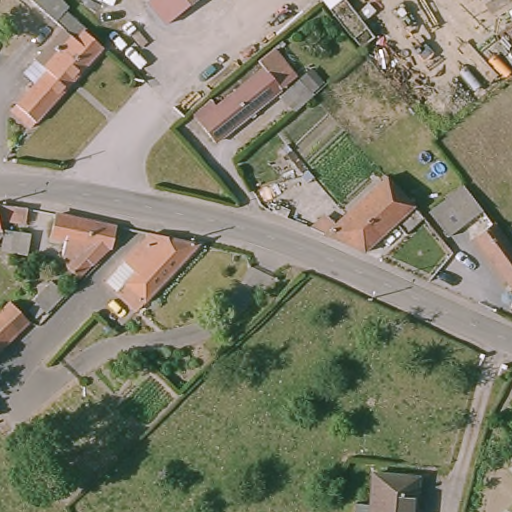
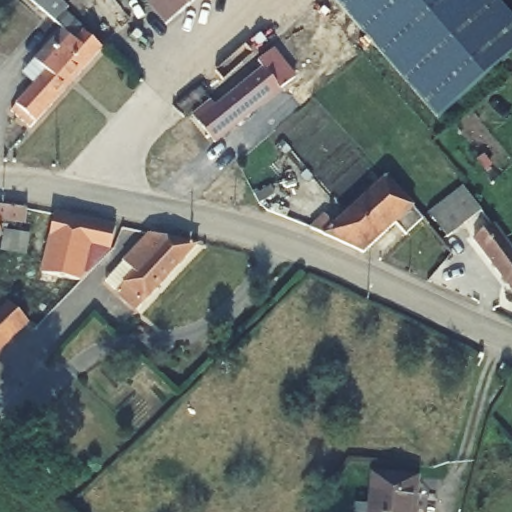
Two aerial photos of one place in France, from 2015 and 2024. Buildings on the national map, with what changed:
unchanged [(11,111),(34,85),(22,74),(62,29),(29,0),(61,0),(68,8),(64,12),(85,31),(83,32),(101,49),(30,129),(11,111)]
unchanged [(188,7),(183,0),(196,0),(188,7)]
new [(512,21),(512,53),(437,118),(336,0),(494,0),(512,21)]
unchanged [(191,116),(210,101),(216,108),(264,71),(258,63),(272,51),(294,79),(213,143),(191,116)]
unchanged [(278,98),(297,81),(311,98),(309,99),(291,114),(278,98)]
unchanged [(311,229),(319,220),(333,225),(385,177),(413,207),(422,219),(404,235),(394,224),(363,253),(311,229)]
unchanged [(449,236),(431,211),(463,187),(481,211),(449,236)]
unchanged [(26,210),(25,225),(0,222),(0,206),(26,210)]
unchanged [(78,278),(71,285),(63,277),(68,270),(66,268),(75,259),(61,256),(65,241),(50,238),(55,216),(63,217),(92,223),(116,228),(109,250),(108,250),(90,267),(90,266),(78,279),(78,278)]
unchanged [(492,225),(512,251),(512,289),(473,239),(492,225)]
unchanged [(25,256),(0,253),(3,235),(3,231),(28,235),(25,256)]
unchanged [(0,237),(0,232),(1,237),(0,237)]
unchanged [(143,239),(192,250),(131,316),(99,287),(143,239)]
demolished [(25,302),(44,282),(58,295),(39,315),(36,313),(29,305),(25,302)]
unchanged [(4,303),(23,323),(0,344),(0,307),(4,303)]
unchanged [(364,506),(368,475),(412,479),(409,512),(349,512),(349,504),(364,506)]

